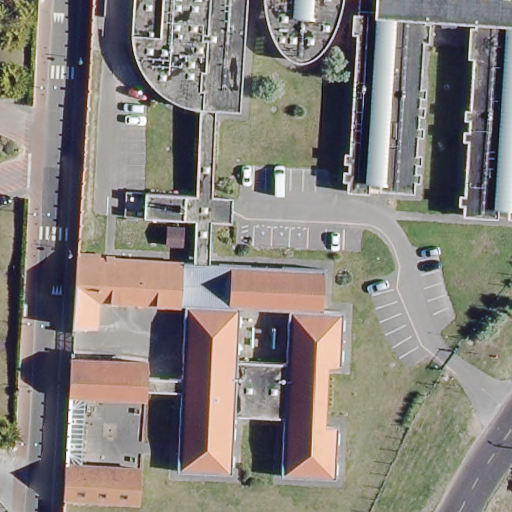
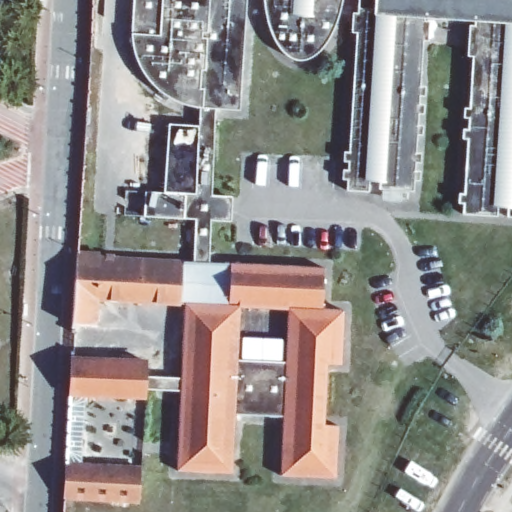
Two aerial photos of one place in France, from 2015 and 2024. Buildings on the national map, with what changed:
unchanged [(237,221),(215,220),(214,262),(198,260),(200,217),(149,215),(150,190),(202,192),(207,105),(196,105),(175,97),(155,81),(146,69),(140,55),(137,27),(139,0),(253,0),(247,109),(222,107),(217,194),(238,195),(237,221)]
unchanged [(348,2),(345,13),(338,33),(331,43),(324,51),(314,57),(307,59),(299,56),(293,52),(287,47),(282,40),(279,34),(275,24),(272,14),(270,2),(270,0),(349,0),(348,2)]
unchanged [(512,203),(507,202),(507,212),(472,211),(482,12),(432,10),(422,188),(387,186),(388,178),(378,177),(377,190),(355,188),(365,0),(512,0),(512,203)]
new [(205,126),(202,192),(164,190),(169,124),(205,126)]
unchanged [(79,285),(80,255),(80,250),(104,252),(104,255),(198,260),(195,302),(100,296),(99,325),(76,323),(79,285)]
unchanged [(287,475),(290,417),(240,414),(237,472),(215,471),(205,471),(182,470),(187,390),(190,377),(195,302),(198,260),(214,262),(330,268),(328,310),(349,310),(347,365),(326,363),(323,425),(343,426),(341,478),(319,477),(309,476),(287,475)]
unchanged [(152,388),(152,396),(90,392),(86,465),(144,468),(142,503),(67,497),(75,358),(154,361),(153,375),(190,377),(187,390),(152,388)]

